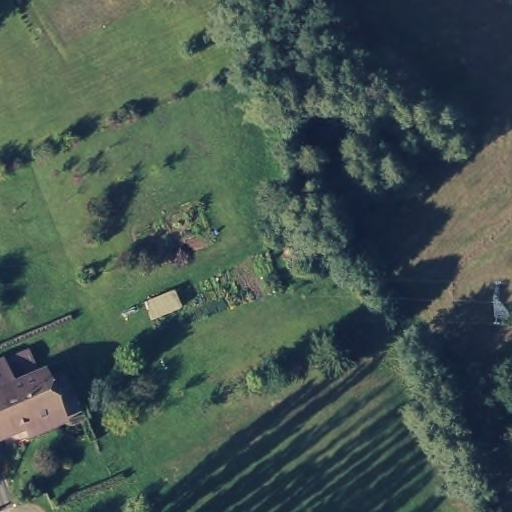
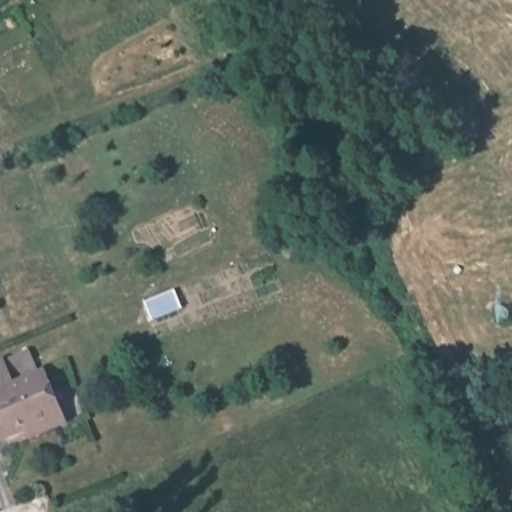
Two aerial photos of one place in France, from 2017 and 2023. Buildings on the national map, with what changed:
unchanged [(174,291),(181,308),(151,319),(145,303),(174,291)]
unchanged [(0,434),(0,358),(2,357),(28,346),(39,372),(40,372),(55,409),(0,434)]

